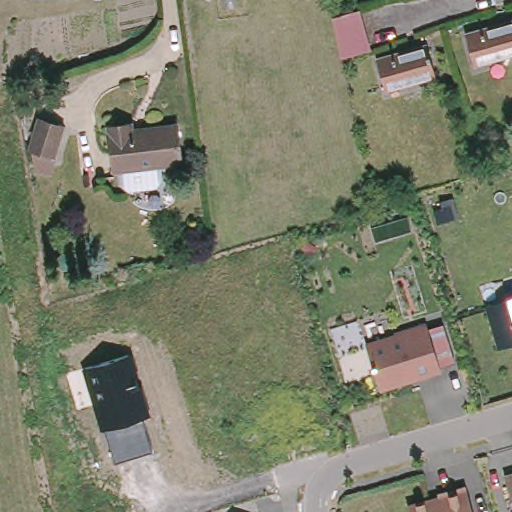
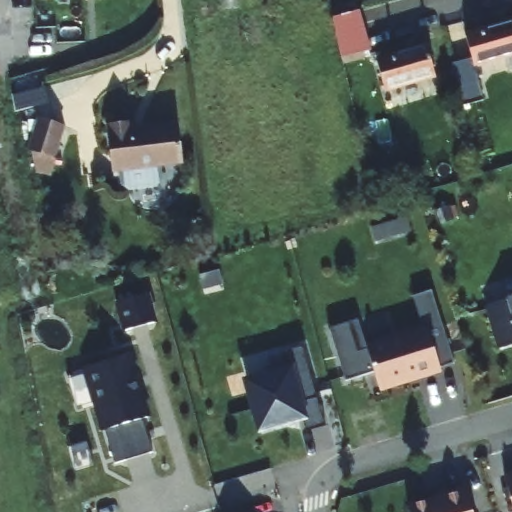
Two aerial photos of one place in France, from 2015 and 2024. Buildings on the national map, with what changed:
unchanged [(335,28),(332,16),(357,10),(360,23),(362,36),(365,48),(340,54),(338,41),(335,28)]
unchanged [(469,32),(512,21),(512,51),(475,57),(469,32)]
unchanged [(438,78),(387,89),(380,62),(430,50),(438,78)]
unchanged [(60,162),(35,154),(43,119),(70,127),(60,162)]
unchanged [(135,130),(175,124),(180,162),(162,164),(163,176),(156,185),(127,187),(120,169),(112,169),(105,126),(130,122),(135,130)]
unchanged [(506,294),(505,291),(512,289),(512,339),(498,343),(485,300),(506,294)]
new [(147,290),(155,319),(126,328),(117,299),(147,290)]
unchanged [(437,292),(447,327),(432,332),(430,325),(422,296),(437,292)]
unchanged [(370,348),(400,339),(398,335),(430,325),(431,327),(443,367),(382,386),(370,348)]
new [(308,430),(303,413),(287,418),(287,421),(262,428),(248,380),(270,374),(267,366),(286,361),(283,350),(305,344),(320,397),(327,424),(308,430)]
unchanged [(141,420),(151,453),(115,465),(105,431),(100,432),(82,370),(131,356),(150,418),(141,420)]
unchanged [(512,466),(512,484),(507,468),(512,466)]
unchanged [(442,488),(440,485),(468,478),(478,512),(415,512),(410,497),(442,488)]

